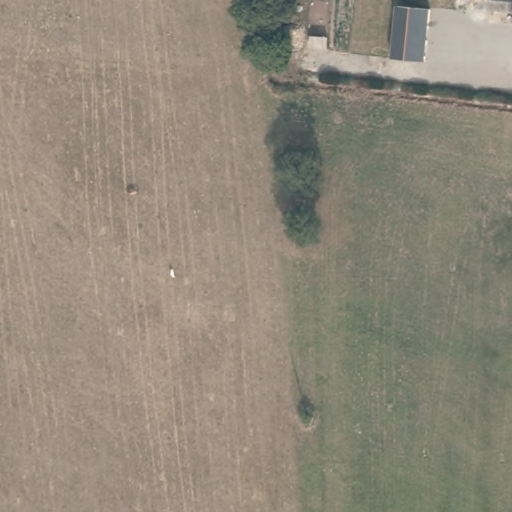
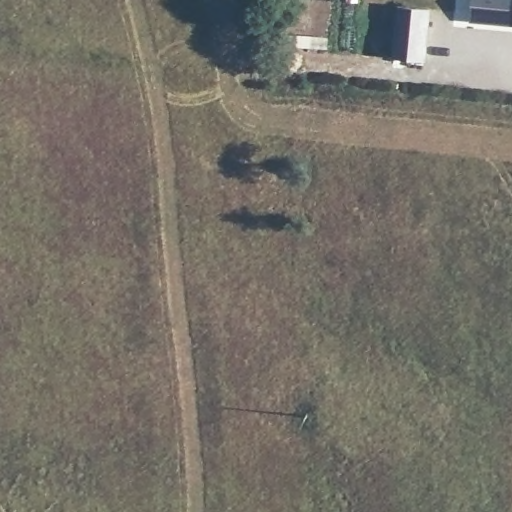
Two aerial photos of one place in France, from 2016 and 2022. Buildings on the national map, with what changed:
unchanged [(460,0),(512,0),(512,13),(459,7),(460,0)]
unchanged [(391,56),(398,6),(430,9),(425,60),(391,56)]

